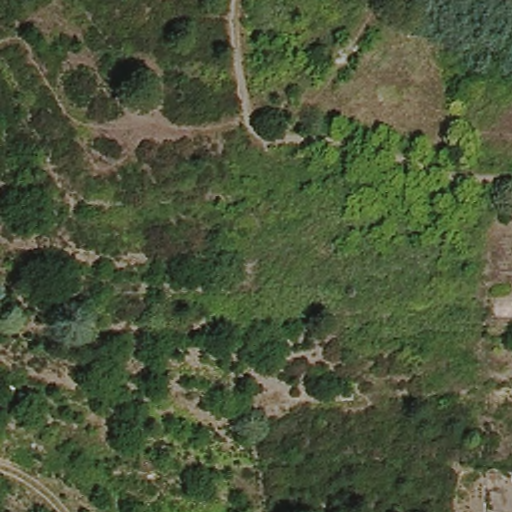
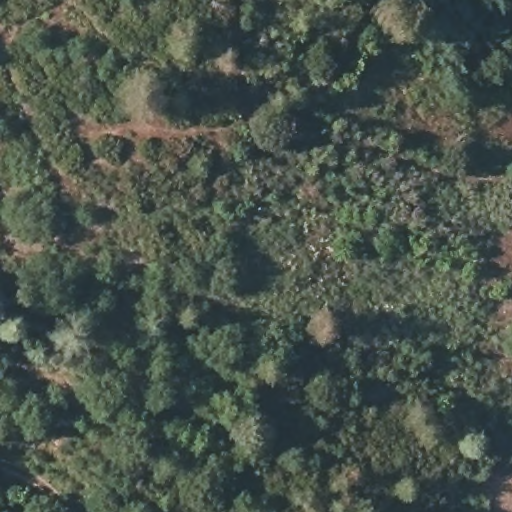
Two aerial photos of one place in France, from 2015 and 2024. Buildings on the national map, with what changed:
unchanged [(335,402),(335,388),(353,386),(352,398),(335,402)]

